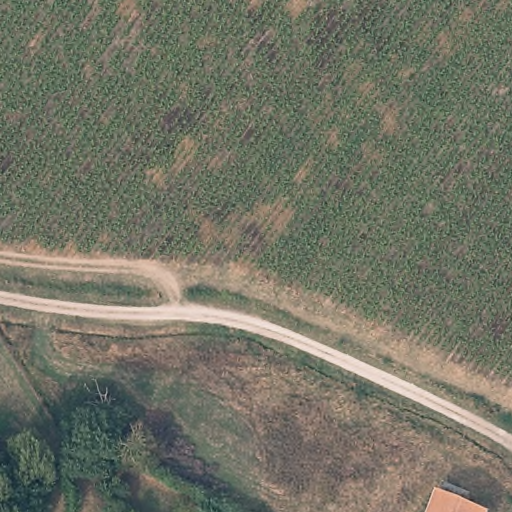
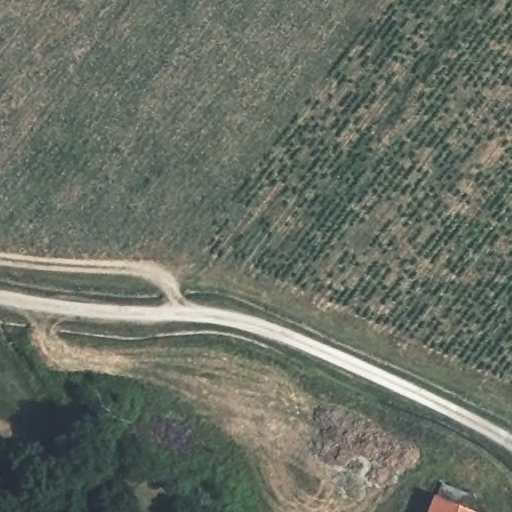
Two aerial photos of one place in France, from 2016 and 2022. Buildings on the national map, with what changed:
unchanged [(471,507),(482,512),(435,512),(448,482),(476,494),(471,507)]

